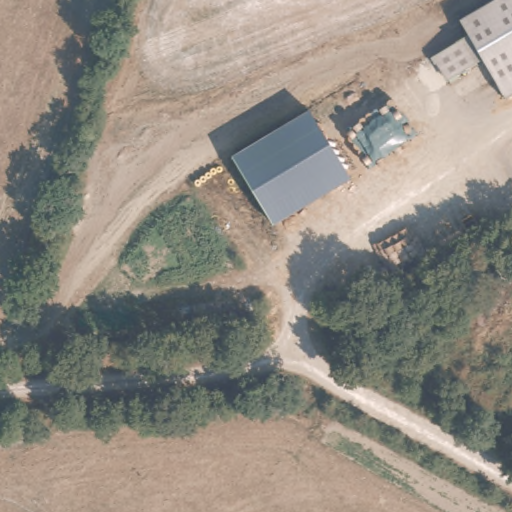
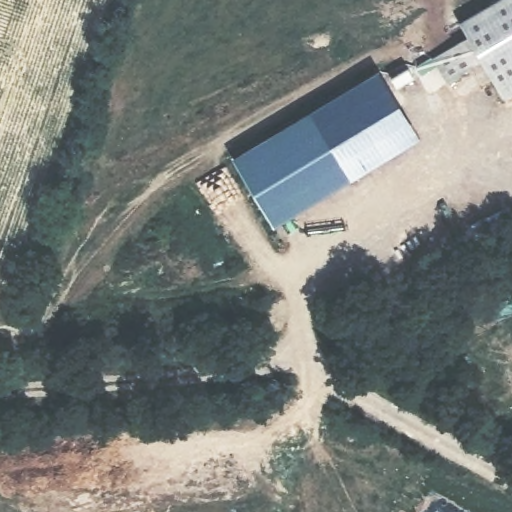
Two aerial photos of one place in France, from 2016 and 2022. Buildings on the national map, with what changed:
unchanged [(492,0),(512,0),(512,92),(501,99),(477,60),(463,36),(455,22),(492,0)]
unchanged [(477,60),(444,80),(434,62),(430,65),(426,58),(463,36),(477,60)]
new [(378,69),(421,138),(350,181),(311,112),(378,69)]
unchanged [(311,112),(350,181),(273,226),(232,159),(311,112)]

